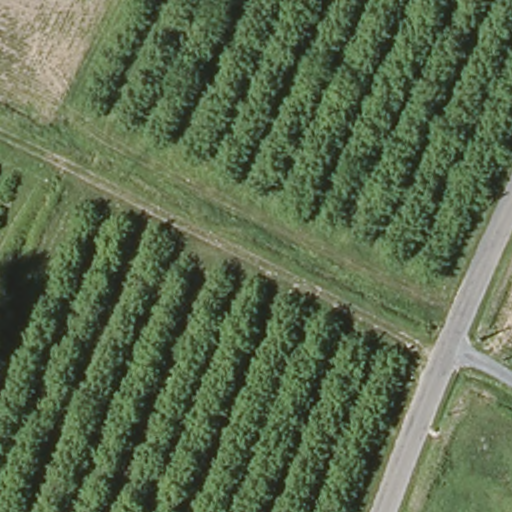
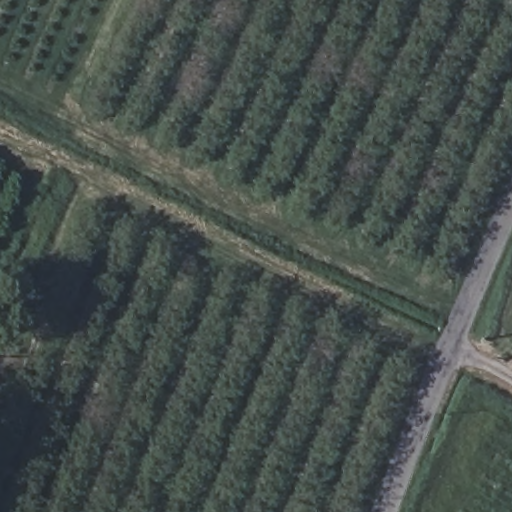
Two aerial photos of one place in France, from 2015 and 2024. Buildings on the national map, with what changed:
[]

